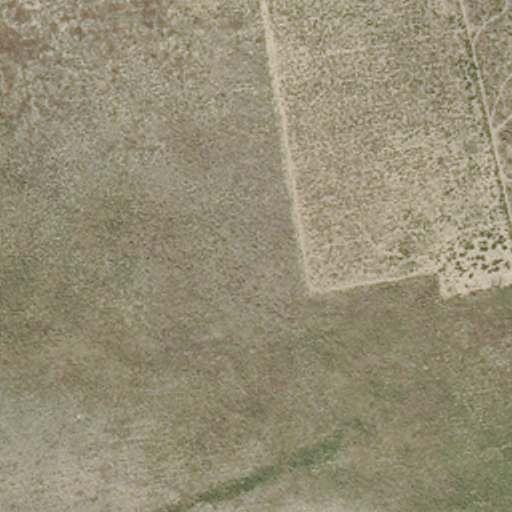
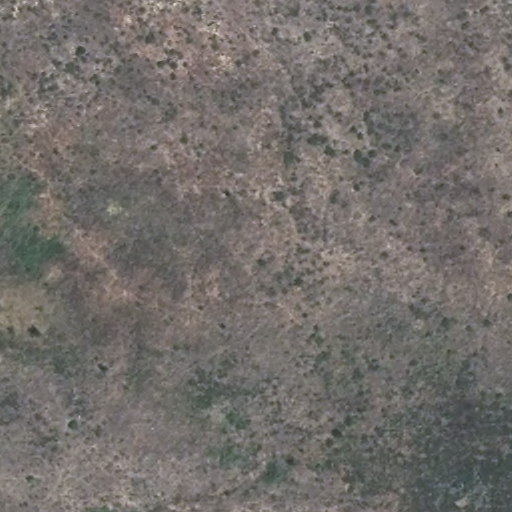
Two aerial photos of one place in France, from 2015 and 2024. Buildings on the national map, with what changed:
[]

